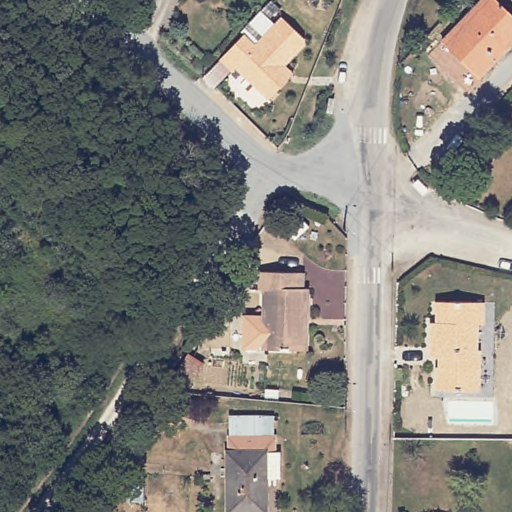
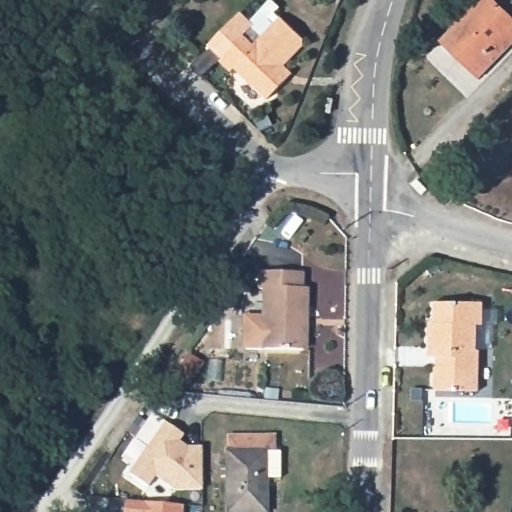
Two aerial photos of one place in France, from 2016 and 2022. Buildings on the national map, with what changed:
unchanged [(482,0),(492,0),(512,20),(512,42),(476,79),(458,62),(440,44),(443,40),(482,0)]
unchanged [(272,100),(237,70),(235,73),(222,61),(246,35),(257,45),(282,17),(306,38),(306,45),(287,65),(291,69),(296,74),(291,79),(272,100)]
unchanged [(262,348),(265,288),(258,287),(259,270),(302,271),(302,288),(307,288),(307,323),(306,350),(300,350),(262,348)]
unchanged [(426,367),(427,333),(432,333),(432,312),(478,313),(478,335),(473,335),(473,360),(476,360),(475,401),(431,400),(432,378),(432,367),(426,367)]
new [(147,446),(134,437),(152,411),(164,420),(184,435),(180,440),(186,446),(202,445),(202,490),(174,490),(155,478),(147,487),(127,473),(147,446)]
unchanged [(227,435),(275,435),(275,451),(280,451),(280,478),(265,478),(264,512),(227,512),(227,435)]
new [(126,500),(184,505),(183,512),(124,512),(126,500)]

